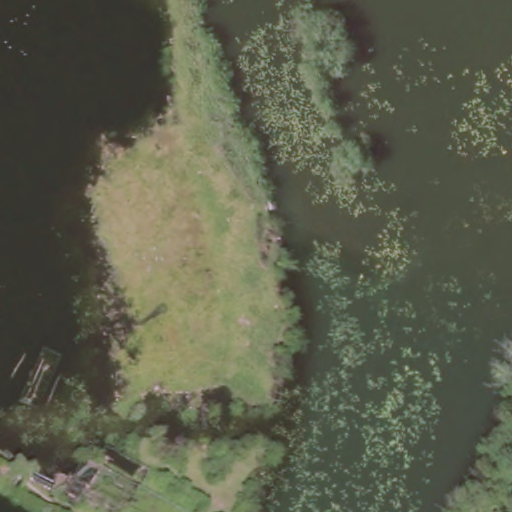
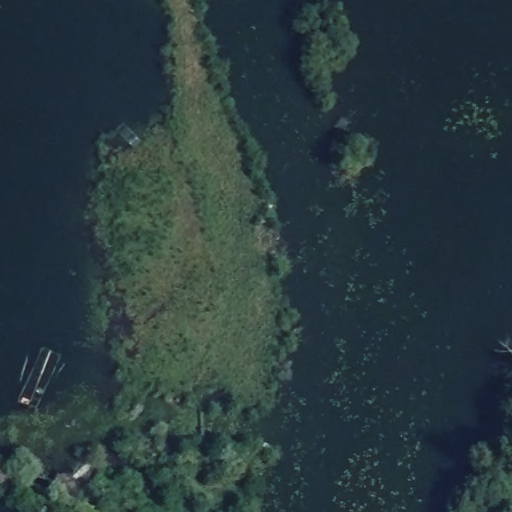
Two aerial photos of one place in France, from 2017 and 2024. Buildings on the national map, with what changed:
[]

